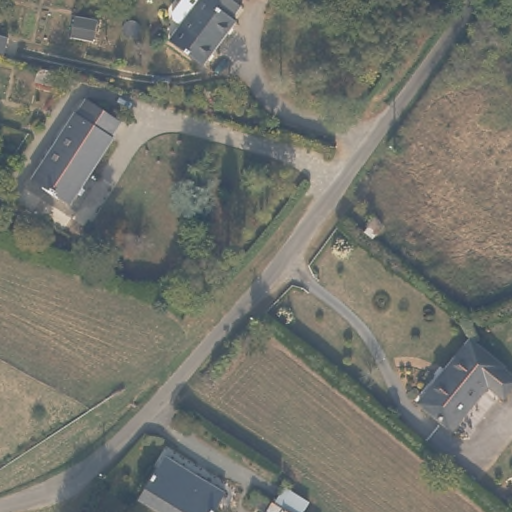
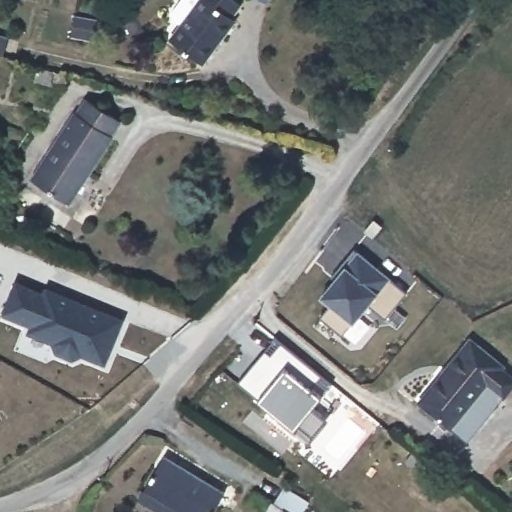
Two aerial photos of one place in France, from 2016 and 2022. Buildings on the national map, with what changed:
unchanged [(245,1),(238,14),(241,19),(212,64),(177,40),(185,29),(177,22),(177,15),(189,0),(242,0),(245,1)]
unchanged [(10,63),(0,60),(0,44),(12,47),(10,63)]
unchanged [(82,95),(52,88),(56,76),(86,84),(82,95)]
unchanged [(121,117),(67,200),(30,175),(85,94),(121,117)]
new [(335,277),(331,275),(352,250),(360,250),(390,276),(389,277),(406,291),(385,317),(369,304),(353,323),(342,335),(322,317),(331,305),(321,296),(335,277)]
new [(106,363),(81,355),(71,359),(56,353),(52,342),(27,333),(30,326),(1,315),(15,280),(45,291),(46,286),(125,318),(106,363)]
unchanged [(502,360),(498,365),(512,375),(512,377),(499,390),(485,380),(448,422),(419,396),(443,368),(437,360),(465,330),(502,360)]
new [(309,386),(321,396),(312,407),(327,420),(310,441),(294,430),(259,398),(239,380),(265,350),(271,355),(282,342),(321,375),(309,386)]
unchanged [(210,512),(157,512),(139,501),(165,456),(222,493),(210,512)]
unchanged [(265,512),(271,502),(285,512),(265,512)]

